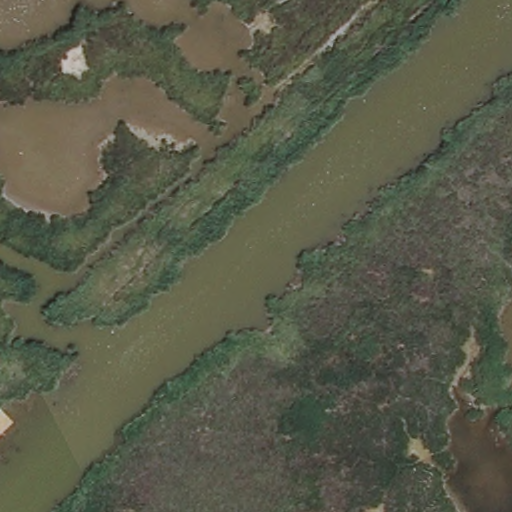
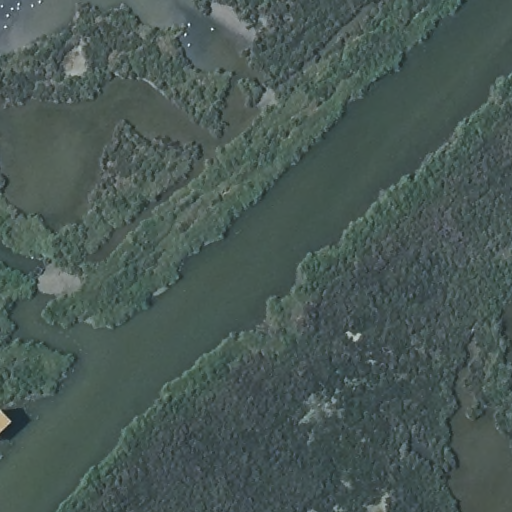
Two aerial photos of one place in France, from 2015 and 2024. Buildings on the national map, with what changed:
unchanged [(20,425),(0,443),(0,414),(9,407),(20,425)]

